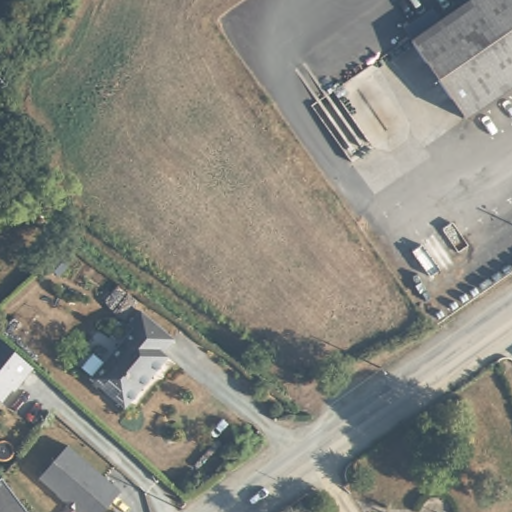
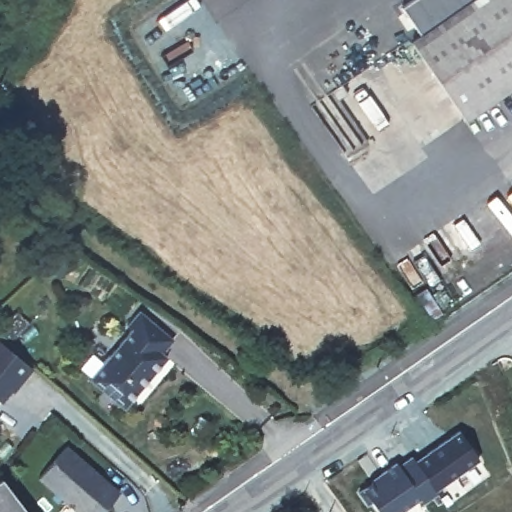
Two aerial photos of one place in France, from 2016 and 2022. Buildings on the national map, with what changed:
new [(400,6),(409,0),(468,0),(419,34),(400,6)]
unchanged [(467,116),(411,39),(468,0),(512,0),(512,82),(467,116)]
unchanged [(168,344),(166,344),(160,353),(166,357),(121,407),(88,376),(131,327),(126,324),(139,310),(173,339),(168,344)]
unchanged [(18,380),(15,377),(0,395),(0,340),(31,366),(18,380)]
new [(438,494),(423,505),(420,498),(400,512),(377,512),(372,503),(369,505),(359,491),(362,488),(371,482),(371,478),(396,461),(398,464),(411,455),(415,461),(458,431),(479,460),(436,490),(438,494)]
unchanged [(99,512),(61,512),(31,486),(59,451),(111,497),(99,512)]
unchanged [(0,512),(0,480),(24,512),(0,512)]

